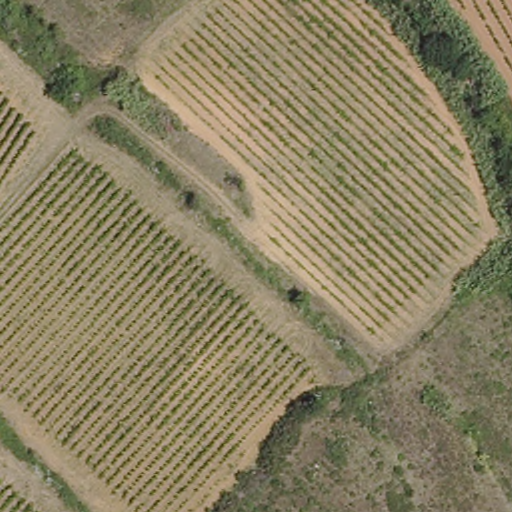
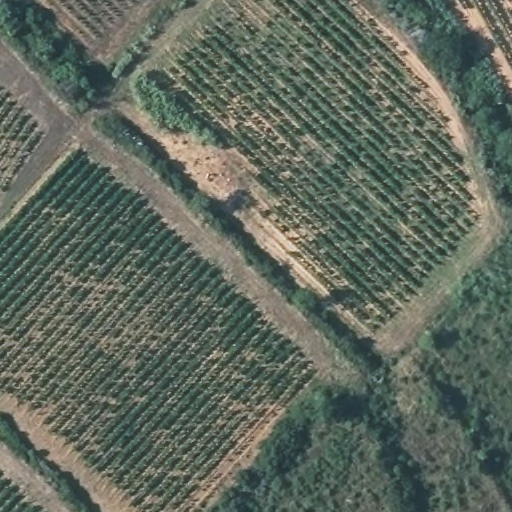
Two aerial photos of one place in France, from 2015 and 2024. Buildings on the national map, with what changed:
[]

